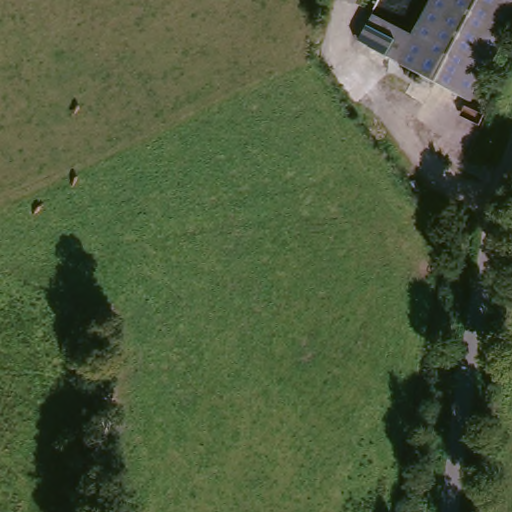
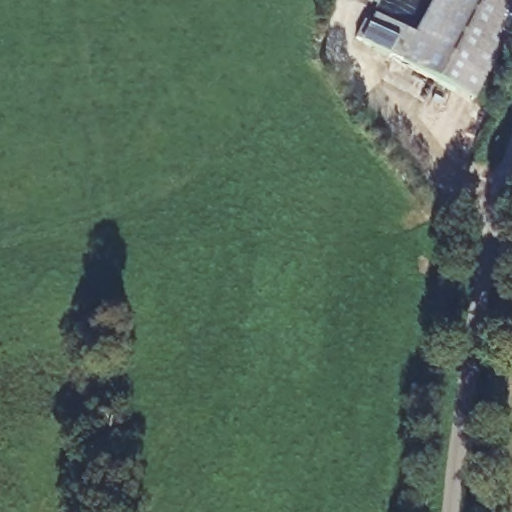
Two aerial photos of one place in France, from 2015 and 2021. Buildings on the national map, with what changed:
unchanged [(437,83),(360,38),(376,10),(414,33),(433,0),(512,0),(512,29),(486,74),(470,102),(437,83)]

